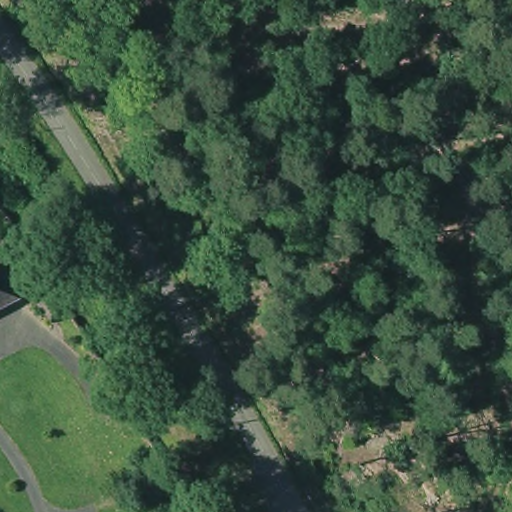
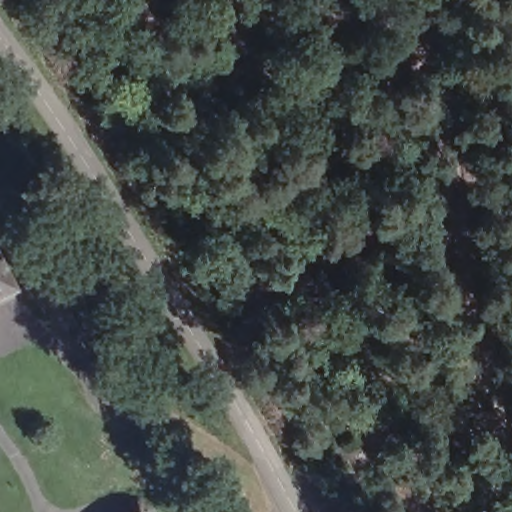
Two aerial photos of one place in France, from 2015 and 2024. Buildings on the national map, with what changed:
unchanged [(19,293),(0,303),(0,257),(19,293)]

